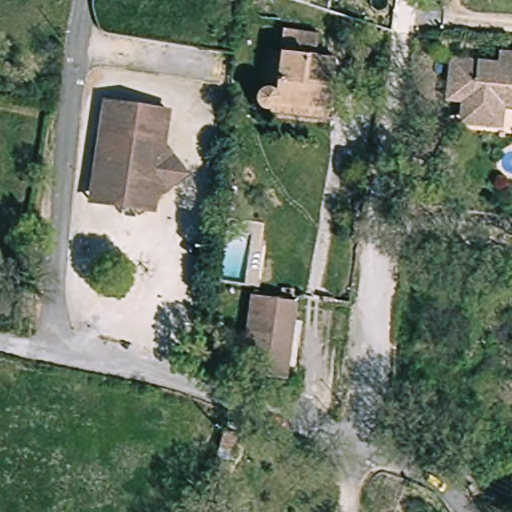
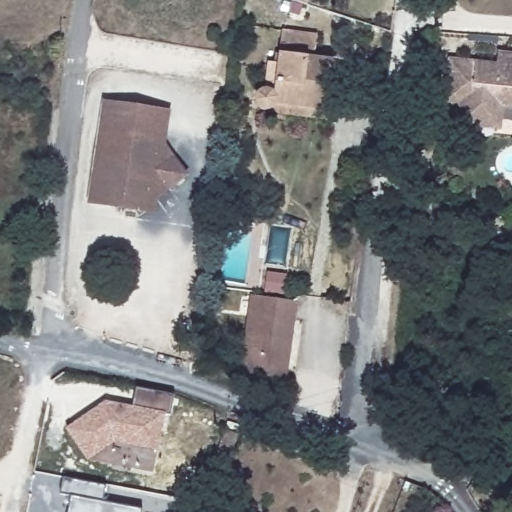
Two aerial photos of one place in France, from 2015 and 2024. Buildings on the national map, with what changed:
unchanged [(254,93),(243,87),(243,75),(247,72),(256,73),(266,48),(277,52),(291,25),(319,40),(312,59),(329,66),(309,109),(304,120),(257,95),(257,90),(254,93)]
unchanged [(467,104),(449,103),(451,65),(501,67),(502,55),(512,57),(512,127),(468,125),(467,104)]
unchanged [(106,95),(173,109),(168,137),(100,124),(106,95)]
unchanged [(97,169),(102,142),(97,140),(100,124),(168,137),(167,145),(186,170),(181,174),(184,180),(159,194),(158,207),(141,215),(136,208),(118,215),(103,192),(89,190),(92,169),(97,169)]
unchanged [(299,298),(289,364),(242,360),(250,294),(299,298)]
new [(108,400),(134,406),(138,386),(177,393),(172,414),(166,413),(159,449),(116,440),(89,456),(69,425),(92,410),(108,400)]
new [(59,472),(102,481),(99,496),(139,504),(137,512),(63,512),(67,491),(56,490),(59,472)]

